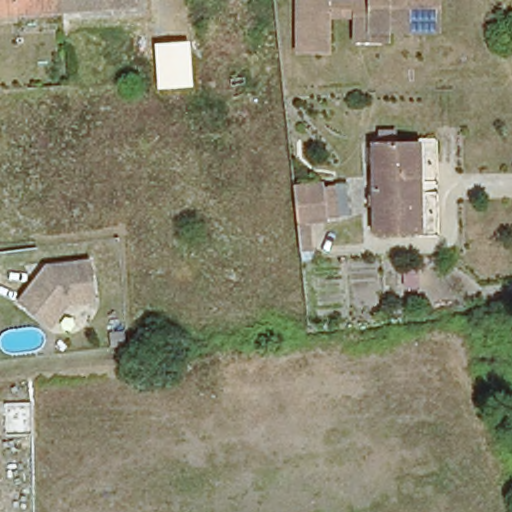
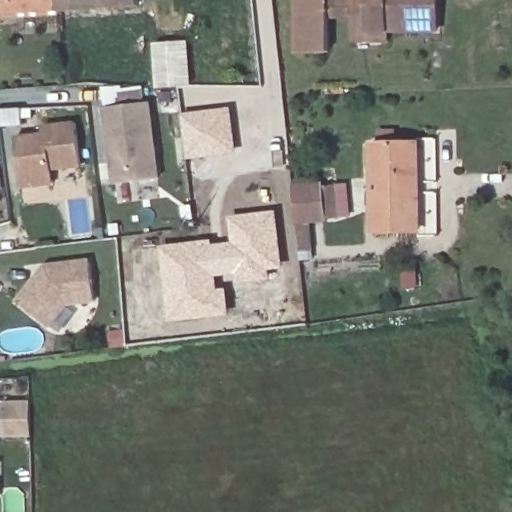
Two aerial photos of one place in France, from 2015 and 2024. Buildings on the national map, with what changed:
unchanged [(0,9),(0,0),(60,0),(60,5),(0,9)]
unchanged [(139,0),(139,1),(60,5),(60,0),(139,0)]
unchanged [(330,0),(330,19),(330,51),(297,51),(297,0),(330,0)]
unchanged [(390,30),(390,44),(350,44),(350,20),(330,19),(330,0),(369,0),(369,30),(390,30)]
unchanged [(390,30),(369,30),(369,0),(438,0),(438,31),(390,30)]
unchanged [(182,43),(184,82),(156,83),(153,45),(182,43)]
new [(151,104),(161,179),(113,185),(104,109),(151,104)]
new [(232,108),(237,154),(188,160),(183,115),(232,108)]
new [(43,132),(41,125),(75,121),(81,166),(52,171),(55,185),(24,190),(16,137),(43,132)]
unchanged [(373,231),(372,144),(418,142),(420,230),(373,231)]
unchanged [(298,242),(296,217),(294,205),(292,181),(321,179),(321,180),(336,179),(339,214),(324,215),(308,216),(311,241),(298,242)]
new [(230,217),(277,210),(283,270),(271,271),(272,281),(238,285),(237,275),(217,277),(219,289),(227,288),(230,316),(170,323),(161,246),(213,240),(213,245),(232,242),(230,217)]
unchanged [(45,271),(90,266),(95,305),(66,309),(48,332),(17,307),(45,271)]
new [(28,404),(29,436),(2,437),(1,405),(28,404)]

